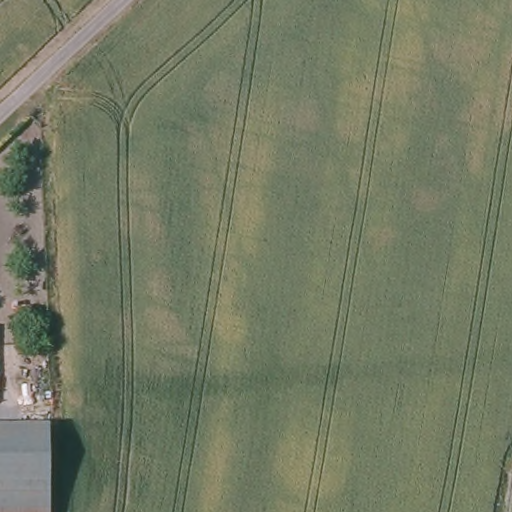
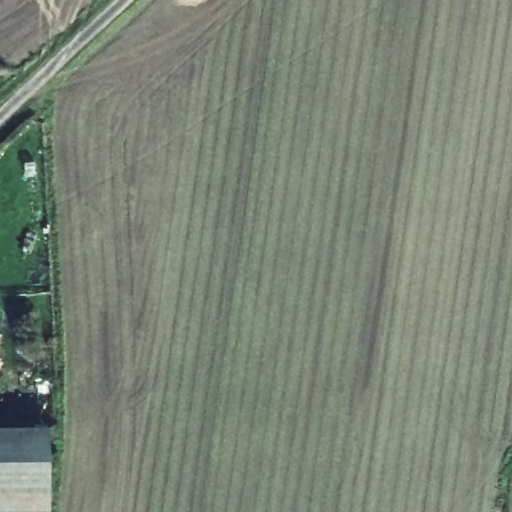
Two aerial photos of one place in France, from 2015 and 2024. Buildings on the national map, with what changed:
unchanged [(47,435),(44,512),(0,512),(0,436),(47,435)]

